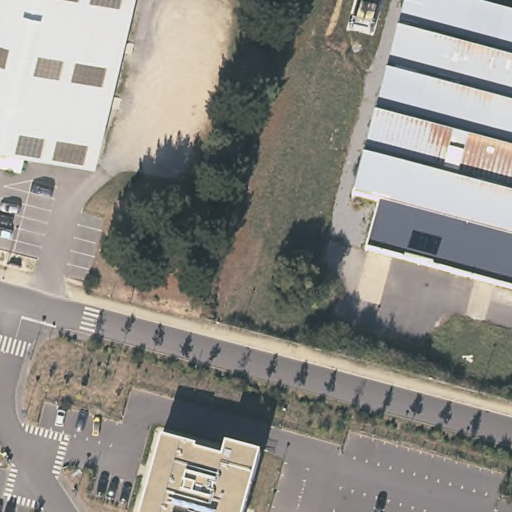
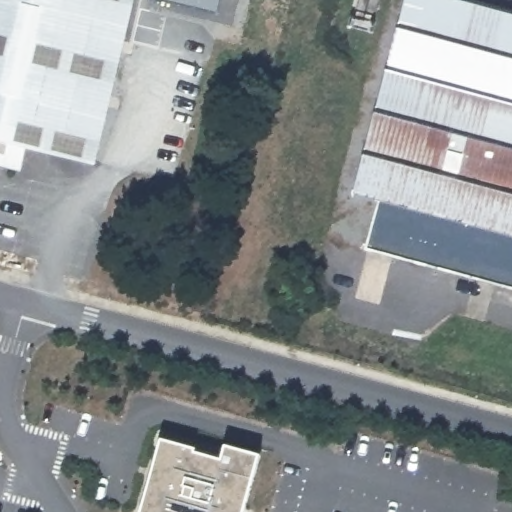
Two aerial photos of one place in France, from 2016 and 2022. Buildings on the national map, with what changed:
unchanged [(122,49),(126,49),(114,95),(111,93),(94,162),(26,144),(20,168),(0,163),(0,0),(133,0),(122,49)]
new [(222,12),(173,0),(225,0),(222,12)]
unchanged [(350,193),(400,0),(465,0),(512,12),(512,291),(362,250),(376,199),(350,193)]
unchanged [(223,455),(225,444),(260,454),(244,512),(141,512),(161,438),(223,455)]

